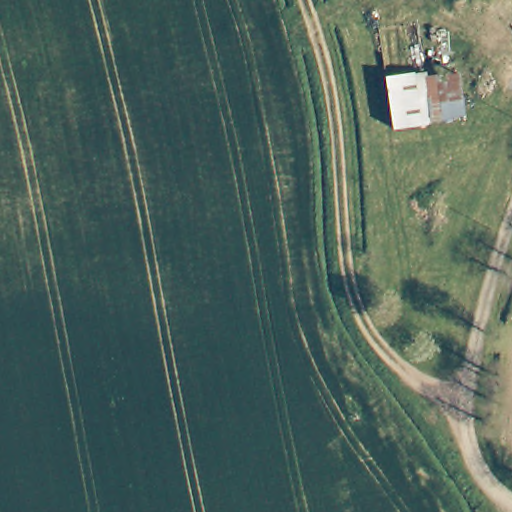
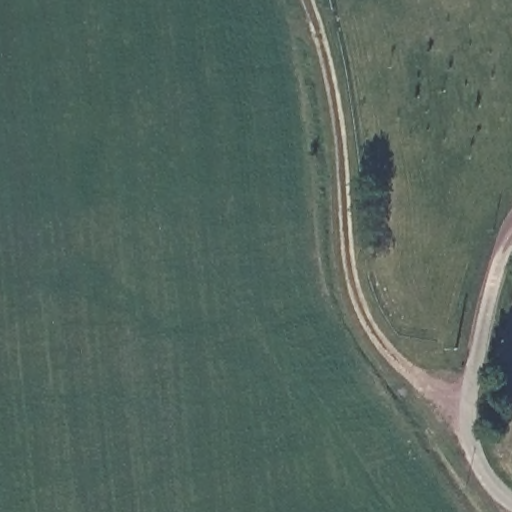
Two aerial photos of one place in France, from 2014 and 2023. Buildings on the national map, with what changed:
demolished [(422,54),(428,80),(473,74),(480,126),(430,132),(394,135),(384,62),(422,54)]

